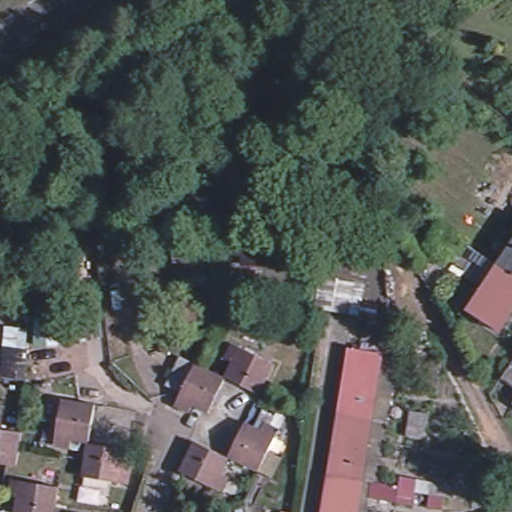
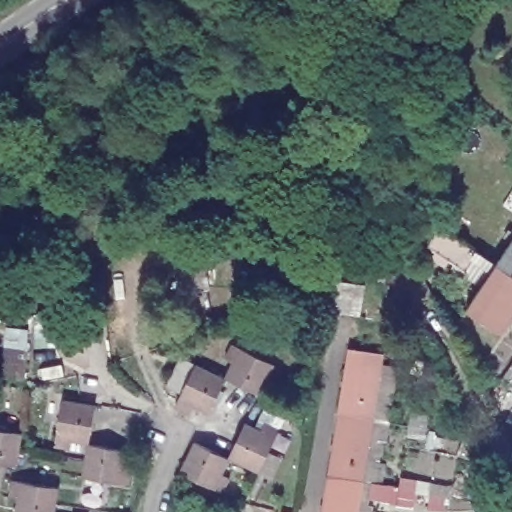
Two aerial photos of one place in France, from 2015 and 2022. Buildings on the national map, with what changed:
unchanged [(465,269),(426,243),(440,224),(478,250),(465,269)]
unchanged [(512,244),(512,286),(493,273),(512,244)]
unchanged [(496,339),(462,317),(493,273),(512,286),(512,316),(496,339)]
unchanged [(227,379),(235,364),(226,359),(234,344),(275,365),(260,395),(227,379)]
unchanged [(353,347),(384,356),(373,417),(342,412),(353,347)]
unchanged [(437,360),(433,383),(418,381),(423,356),(436,358),(437,359),(437,360)]
unchanged [(210,412),(196,405),(192,412),(178,405),(198,365),(227,379),(210,412)]
unchanged [(512,382),(512,394),(507,391),(512,382)]
unchanged [(90,445),(73,443),(73,449),(60,447),(66,400),(96,405),(90,445)]
unchanged [(403,431),(405,419),(407,407),(425,410),(423,422),(421,434),(403,431)]
unchanged [(342,412),(373,417),(362,482),(331,476),(342,412)]
unchanged [(259,431),(264,422),(278,429),(257,472),(226,457),(242,422),(259,431)]
unchanged [(25,433),(18,466),(0,463),(0,429),(25,433)]
unchanged [(219,474),(228,477),(221,494),(177,471),(193,441),(226,457),(219,474)]
unchanged [(128,450),(125,468),(134,470),(131,486),(84,479),(90,445),(128,450)]
unchanged [(357,512),(325,512),(331,476),(362,482),(357,512)]
unchanged [(382,481),(393,483),(394,479),(412,481),(411,486),(409,496),(392,493),(391,498),(380,496),(382,481)]
unchanged [(12,498),(15,480),(60,489),(56,512),(18,512),(21,499),(12,498)]

